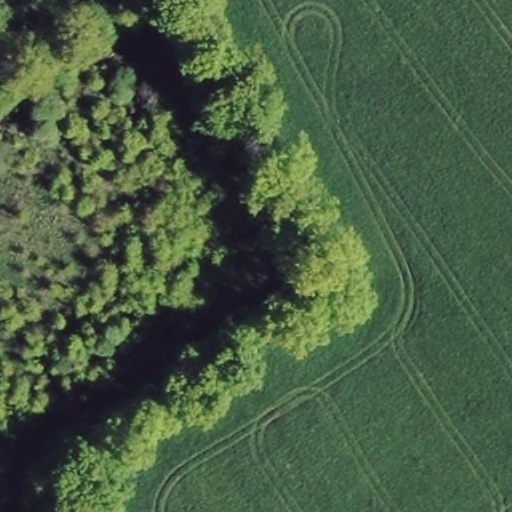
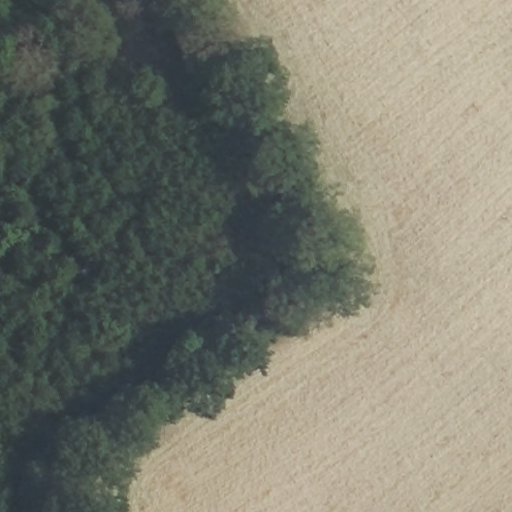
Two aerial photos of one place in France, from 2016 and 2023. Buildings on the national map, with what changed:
[]

